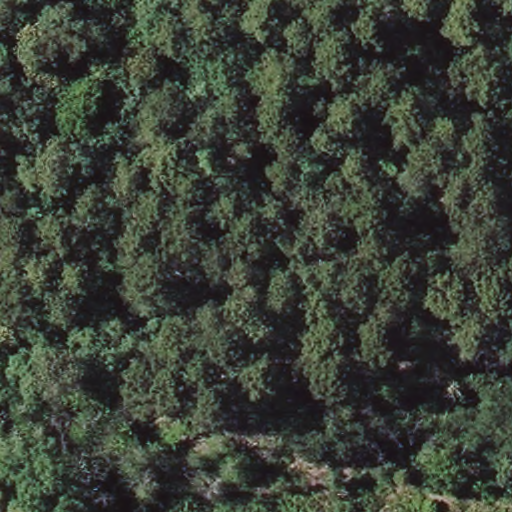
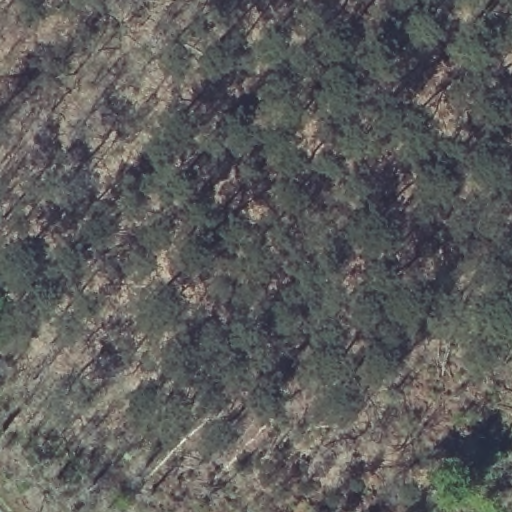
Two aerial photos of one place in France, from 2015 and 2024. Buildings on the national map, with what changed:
[]

